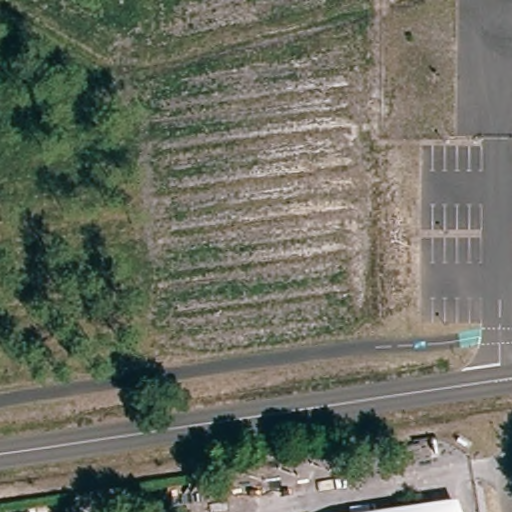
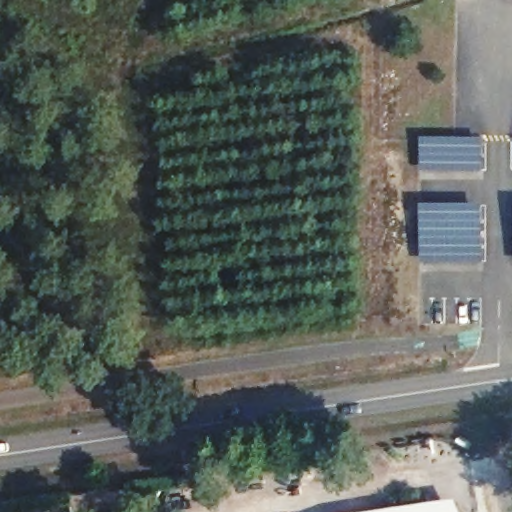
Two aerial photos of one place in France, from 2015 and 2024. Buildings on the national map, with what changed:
new [(423,133),(485,134),(485,165),(422,164),(423,133)]
new [(422,197),(484,198),(483,255),(421,254),(422,197)]
unchanged [(460,512),(413,512),(458,505),(460,512)]

